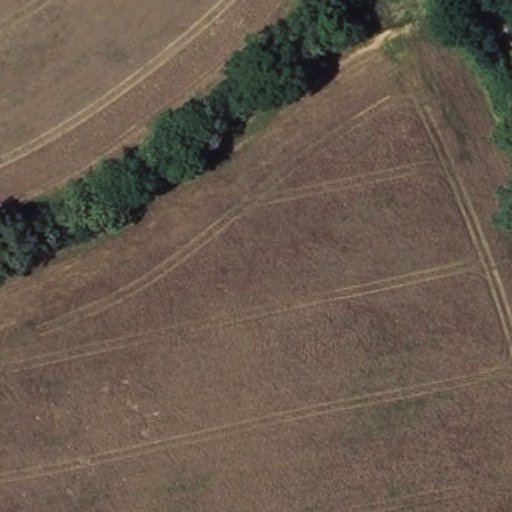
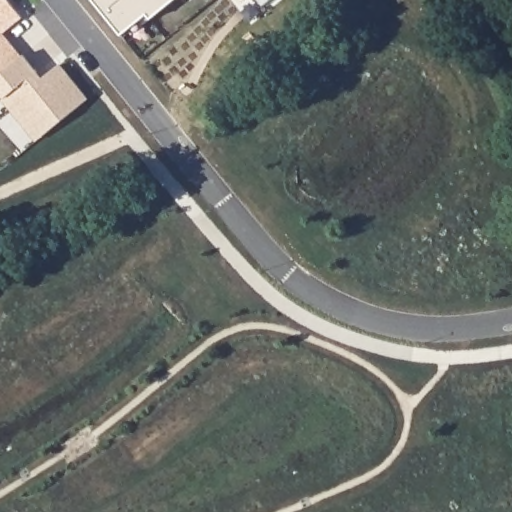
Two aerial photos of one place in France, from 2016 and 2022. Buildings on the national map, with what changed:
new [(22,18),(3,34),(22,57),(0,75),(0,0),(8,0),(22,18)]
new [(27,127),(0,93),(0,75),(22,57),(24,55),(43,79),(58,66),(86,101),(56,126),(38,140),(27,127)]

